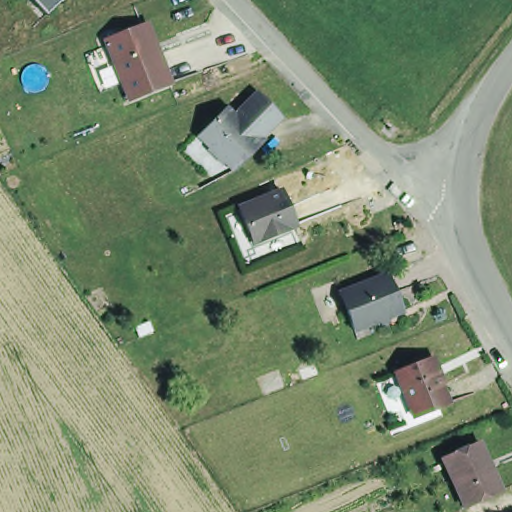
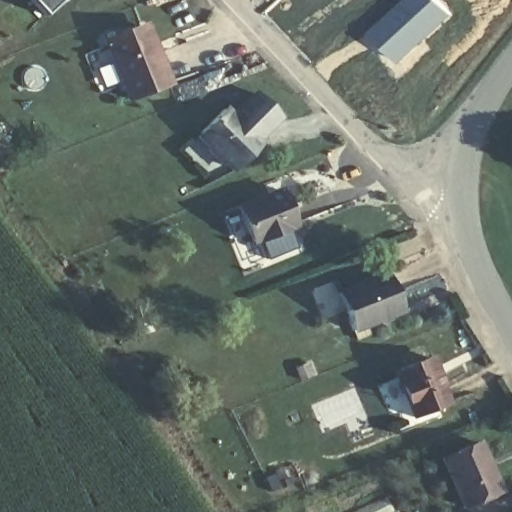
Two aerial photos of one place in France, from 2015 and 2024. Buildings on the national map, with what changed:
unchanged [(32,0),(62,0),(47,15),(32,0)]
new [(442,0),(454,12),(398,64),(368,30),(401,0),(442,0)]
unchanged [(172,83),(126,99),(102,36),(150,20),(172,83)]
unchanged [(235,116),(259,92),(281,114),(256,139),(260,142),(235,168),(225,157),(220,158),(214,152),(212,144),(201,131),(225,107),(235,116)]
unchanged [(238,205),(279,189),(292,222),(252,239),(238,205)]
unchanged [(387,314),(382,322),(372,320),(352,328),(342,307),(336,292),(342,290),(385,273),(396,304),(398,310),(387,314)]
unchanged [(445,401),(412,415),(394,371),(427,358),(445,401)]
unchanged [(475,443),(493,490),(459,503),(441,456),(475,443)]

